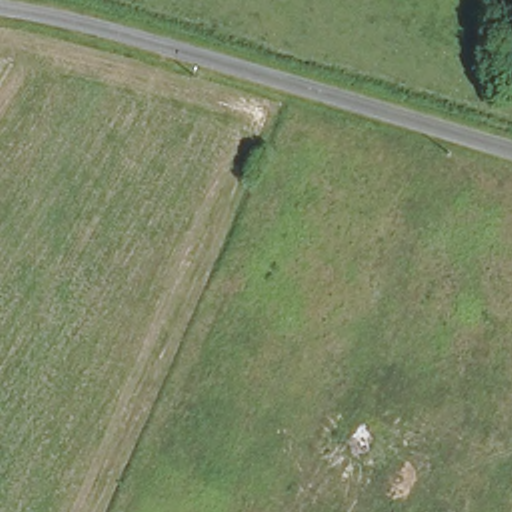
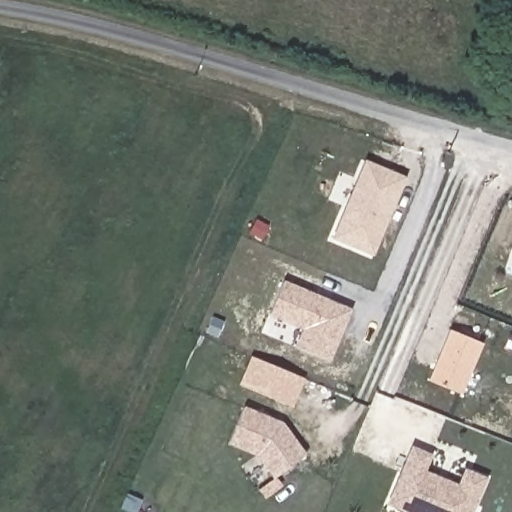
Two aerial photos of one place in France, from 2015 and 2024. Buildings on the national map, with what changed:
new [(407,177),(371,250),(363,252),(334,238),(366,162),(407,177)]
new [(304,329),(270,314),(284,280),(351,308),(329,360),(298,347),(304,329)]
new [(461,393),(431,380),(450,333),(481,346),(461,393)]
new [(239,384),(251,355),(306,378),(292,406),(239,384)]
new [(246,409),(284,426),(308,458),(278,480),(260,456),(231,443),(246,409)]
new [(416,449),(433,456),(427,472),(437,477),(453,483),(462,487),(469,471),(489,479),(476,512),(406,512),(392,506),(405,475),(416,449)]

